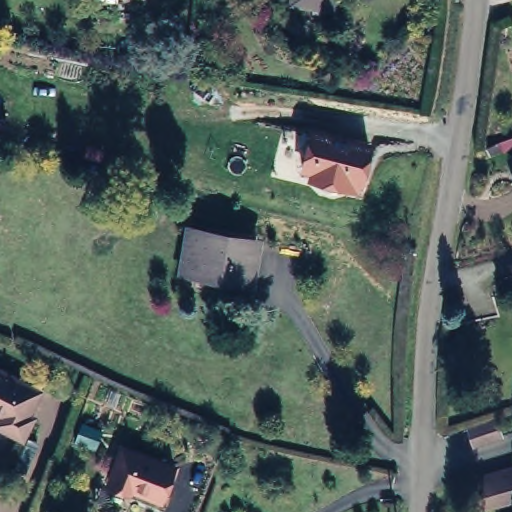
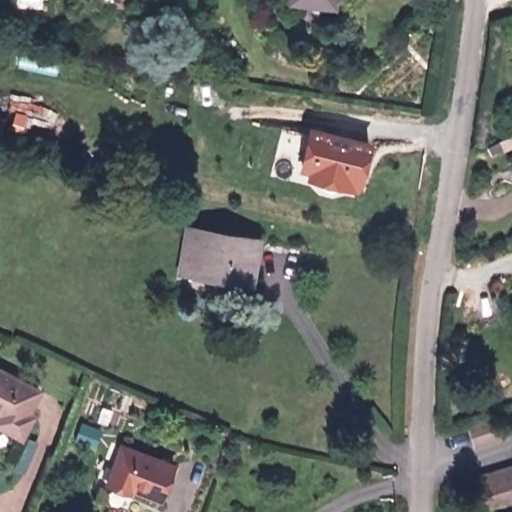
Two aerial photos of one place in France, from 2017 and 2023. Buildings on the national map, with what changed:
unchanged [(359,195),(303,180),(304,172),(296,170),(309,126),(374,144),(359,195)]
unchanged [(243,282),(183,271),(173,270),(182,229),(191,230),(251,242),(243,282)]
unchanged [(25,410),(30,411),(18,431),(0,421),(0,363),(38,385),(25,410)]
unchanged [(496,415),(499,436),(470,442),(467,423),(496,415)]
unchanged [(176,465),(161,500),(105,475),(120,440),(176,465)]
unchanged [(489,496),(481,468),(512,460),(512,490),(489,496)]

